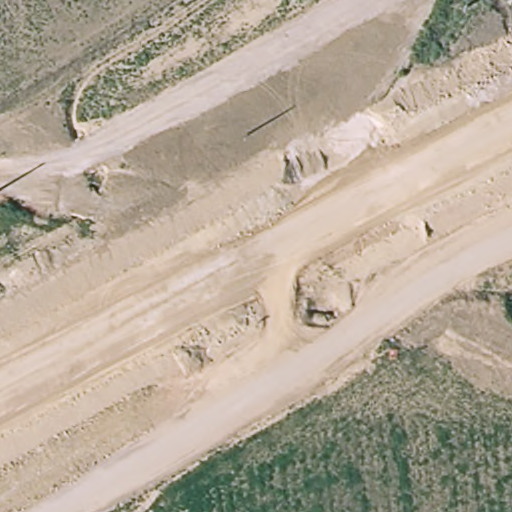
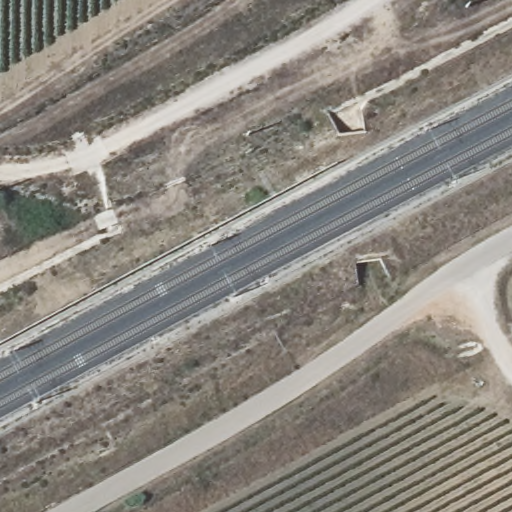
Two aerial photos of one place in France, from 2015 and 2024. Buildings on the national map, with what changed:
[]

